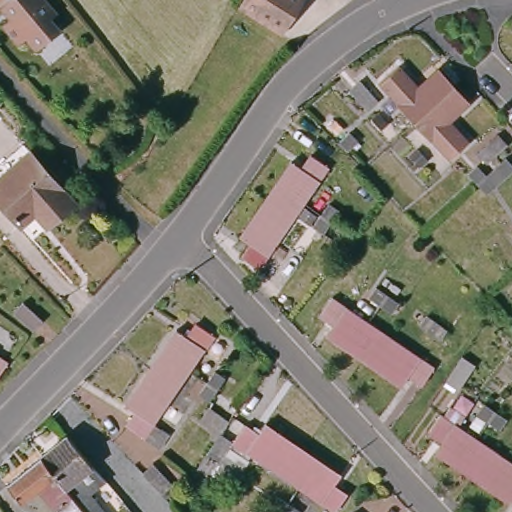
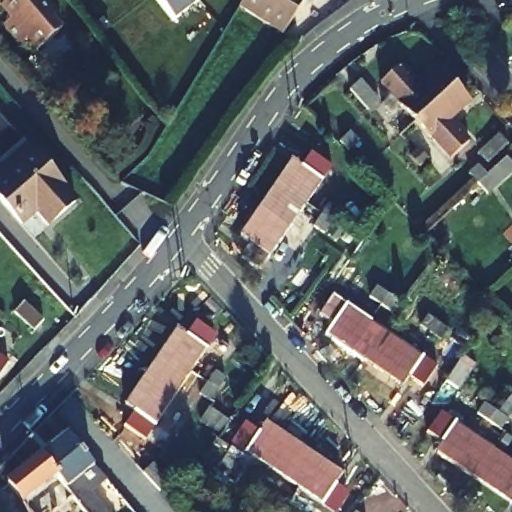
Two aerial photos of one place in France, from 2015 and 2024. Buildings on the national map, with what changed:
unchanged [(63,23),(40,43),(30,32),(22,39),(5,20),(12,14),(0,2),(0,0),(46,0),(53,7),(50,10),(63,23)]
new [(172,15),(160,0),(191,0),(172,15)]
unchanged [(239,0),(300,0),(280,31),(236,4),(239,0)]
unchanged [(370,91),(357,103),(337,81),(350,70),(370,91)]
unchanged [(418,127),(383,90),(403,71),(423,92),(441,76),(456,92),(418,127)]
unchanged [(456,92),(470,108),(452,125),(472,147),(453,167),(418,127),(456,92)]
unchanged [(508,144),(488,163),(477,151),(497,133),(508,144)]
unchanged [(346,136),(355,145),(347,154),(337,144),(346,136)]
unchanged [(41,232),(30,219),(15,231),(0,213),(0,166),(20,149),(26,156),(56,191),(70,208),(41,232)]
unchanged [(265,198),(291,160),(302,167),(310,155),(327,166),(293,216),(265,198)]
unchanged [(487,196),(475,185),(468,177),(477,169),(483,177),(503,158),(512,167),(512,172),(487,196)]
unchanged [(343,195),(332,213),(320,206),(332,188),(343,195)]
unchanged [(293,216),(257,267),(241,256),(250,243),(239,236),(265,198),(293,216)]
unchanged [(305,239),(312,229),(318,218),(330,226),(323,236),(317,246),(305,239)]
unchanged [(404,321),(393,314),(383,307),(391,296),(401,303),(412,310),(404,321)]
unchanged [(363,360),(327,334),(332,327),(317,317),(330,298),(382,333),(363,360)]
unchanged [(150,367),(175,330),(185,337),(193,325),(210,336),(177,386),(150,367)]
unchanged [(382,333),(431,367),(419,385),(406,376),(400,385),(363,360),(382,333)]
unchanged [(0,371),(0,358),(6,362),(0,371)]
unchanged [(177,386),(152,424),(162,431),(153,445),(125,426),(134,412),(125,405),(150,367),(177,386)]
unchanged [(187,408),(194,397),(202,386),(213,394),(206,406),(198,416),(187,408)]
unchanged [(502,433),(490,426),(497,415),(508,423),(512,425),(512,440),(502,433)]
unchanged [(477,482),(440,457),(446,447),(433,438),(445,421),(495,455),(477,482)]
unchanged [(285,478),(247,453),(237,469),(222,459),(245,425),(256,433),(263,423),(302,450),(285,478)]
unchanged [(100,479),(106,486),(89,498),(99,512),(78,512),(75,508),(70,502),(42,466),(38,462),(67,439),(100,479)]
unchanged [(302,450),(338,473),(332,484),(345,493),(333,511),(285,478),(302,450)]
unchanged [(495,455),(512,466),(512,506),(477,482),(495,455)]
unchanged [(70,502),(75,508),(78,512),(49,512),(35,495),(20,507),(4,488),(38,462),(42,466),(70,502)]
unchanged [(260,512),(254,508),(267,490),(273,495),(287,504),(282,512),(260,512)]
unchanged [(350,512),(346,512),(347,510),(350,512)]

